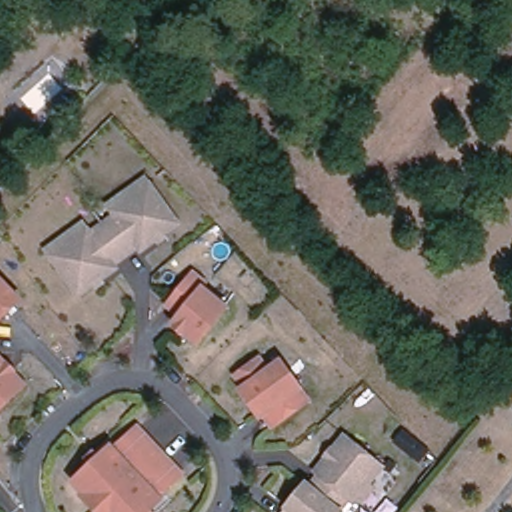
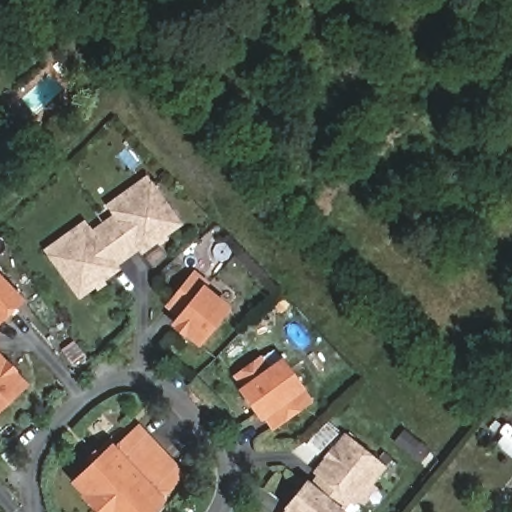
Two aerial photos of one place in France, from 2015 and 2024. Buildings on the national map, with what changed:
unchanged [(77,296),(43,247),(84,218),(90,229),(112,212),(108,204),(144,176),(176,223),(77,296)]
unchanged [(196,342),(170,324),(177,316),(164,307),(192,272),(208,283),(202,289),(229,306),(196,342)]
unchanged [(0,317),(0,279),(20,298),(0,317)]
unchanged [(275,424),(234,375),(273,347),(309,396),(275,424)]
unchanged [(0,360),(22,386),(0,406),(0,360)]
unchanged [(144,512),(101,512),(70,479),(136,425),(181,471),(144,512)]
unchanged [(344,512),(282,512),(343,434),(381,463),(344,512)]

